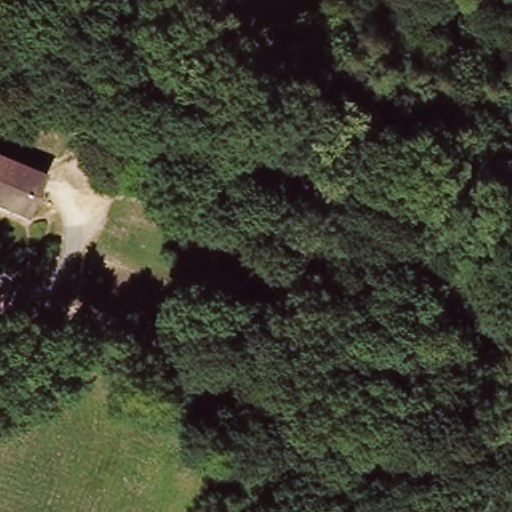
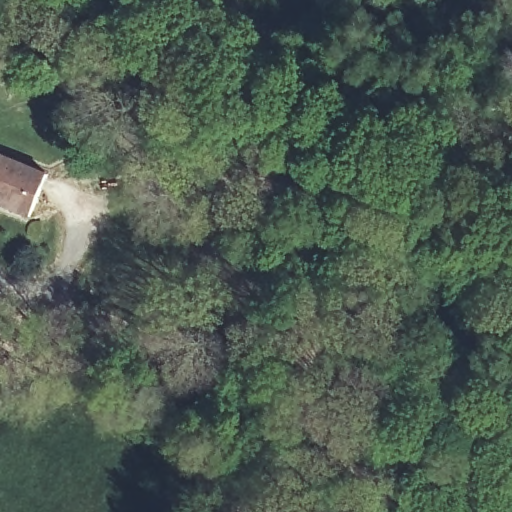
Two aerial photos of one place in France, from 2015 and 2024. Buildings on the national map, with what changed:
unchanged [(0,208),(0,155),(43,176),(22,219),(0,208)]

